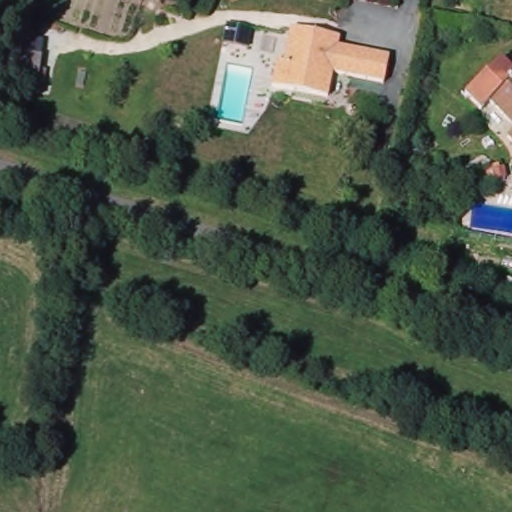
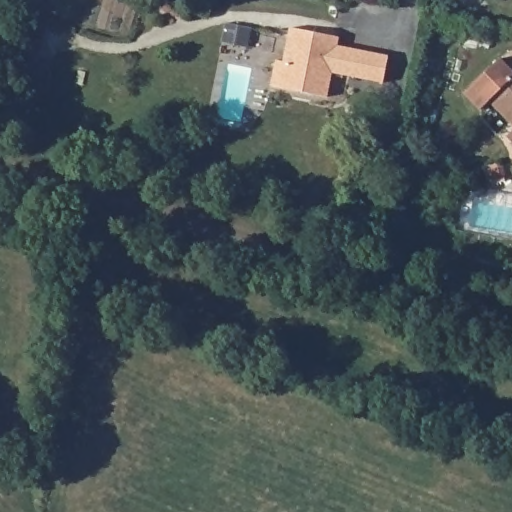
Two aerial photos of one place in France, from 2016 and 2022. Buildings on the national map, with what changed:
unchanged [(338,46),(352,49),(389,56),(384,83),(333,73),(328,97),(272,87),(276,60),(284,62),(291,27),(340,37),(338,46)]
unchanged [(511,128),(485,101),(476,110),(460,94),(496,58),(504,67),(512,59),(512,146),(502,137),(511,128)]

